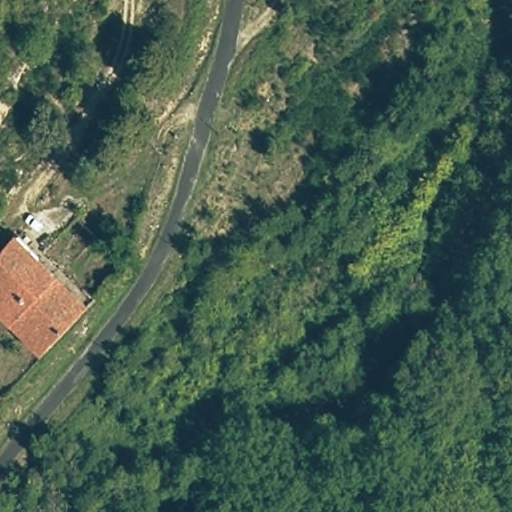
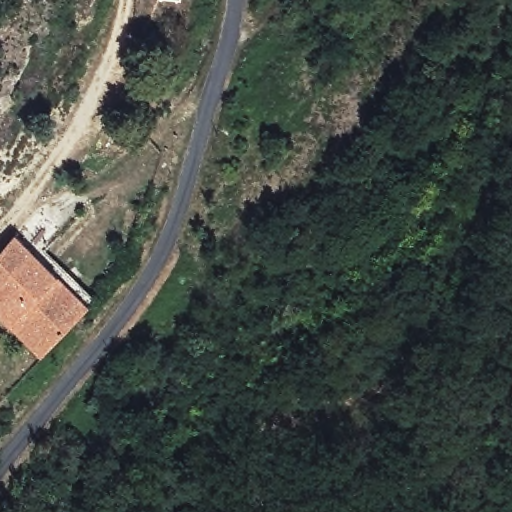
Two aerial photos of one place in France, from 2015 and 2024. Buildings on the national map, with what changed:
unchanged [(90,308),(46,352),(0,315),(0,263),(20,241),(90,308)]

